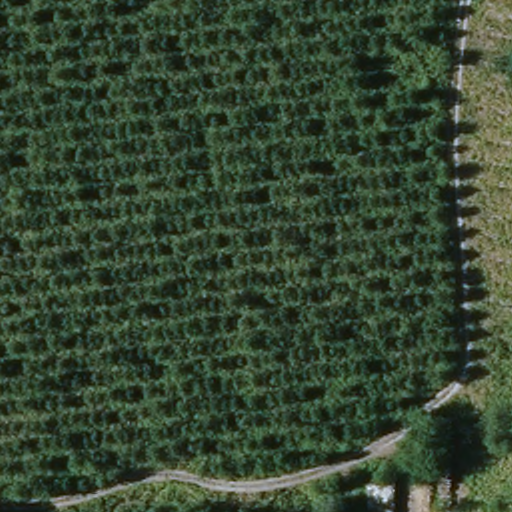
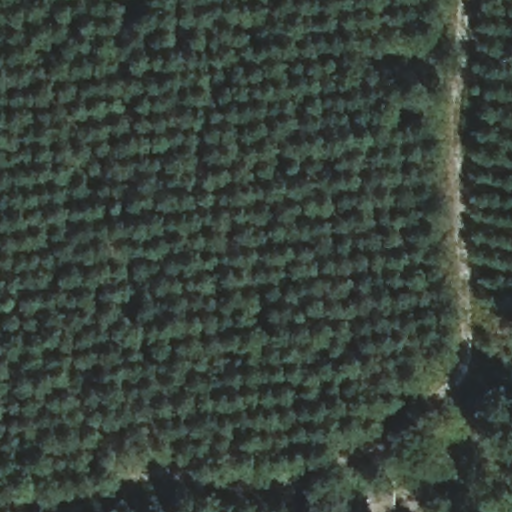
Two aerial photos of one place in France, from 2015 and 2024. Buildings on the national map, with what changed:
unchanged [(366,483),(390,484),(390,512),(366,512),(366,483)]

